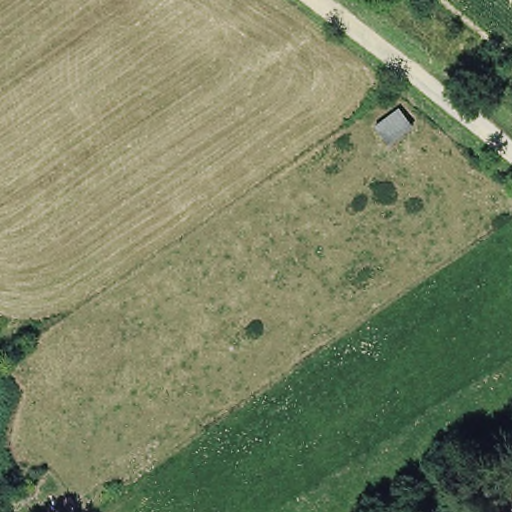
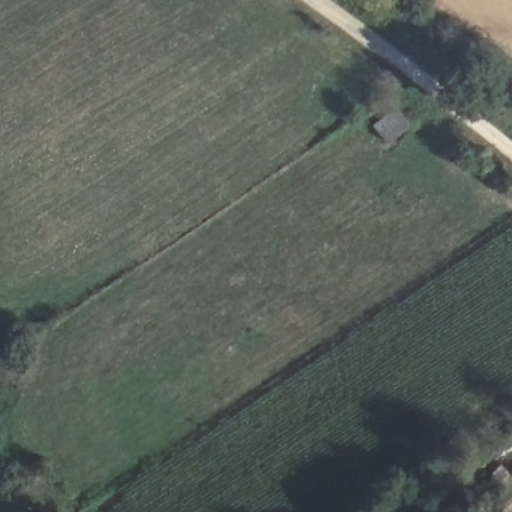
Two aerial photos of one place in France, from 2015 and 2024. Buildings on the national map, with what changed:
unchanged [(375,127),(400,109),(412,125),(388,143),(375,127)]

